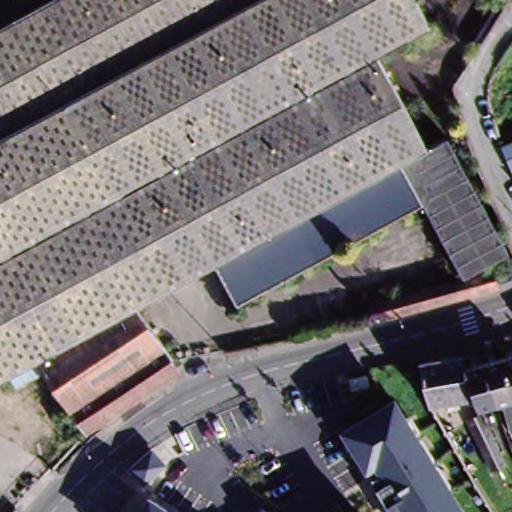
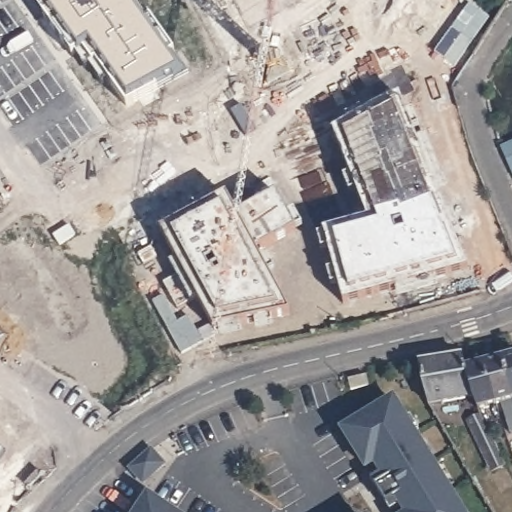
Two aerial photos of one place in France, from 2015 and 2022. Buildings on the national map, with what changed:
demolished [(431,25),(377,55),(427,148),(400,163),(392,167),(210,263),(158,290),(108,200),(0,256),(0,27),(50,0),(417,0),(431,25)]
demolished [(445,138),(507,252),(462,278),(420,201),(400,163),(427,148),(445,138)]
unchanged [(512,141),(512,175),(500,146),(512,141)]
demolished [(420,201),(230,301),(210,263),(392,167),(400,163),(420,201)]
demolished [(11,385),(4,372),(0,375),(0,256),(108,200),(158,290),(130,306),(29,360),(26,360),(33,373),(11,385)]
demolished [(497,290),(374,321),(369,302),(462,278),(492,270),(497,290)]
demolished [(66,410),(29,360),(130,306),(162,348),(66,410)]
demolished [(170,375),(112,414),(104,419),(90,429),(84,435),(66,410),(162,348),(177,370),(170,375)]
unchanged [(497,401),(493,402),(475,407),(472,395),(432,405),(429,393),(420,364),(460,355),(463,365),(480,360),(500,355),(512,352),(512,429),(506,430),(497,401)]
unchanged [(392,512),(340,431),(394,396),(465,512),(392,512)]
unchanged [(505,463),(493,470),(465,421),(477,413),(505,463)]
unchanged [(172,512),(136,512),(147,495),(172,512)]

